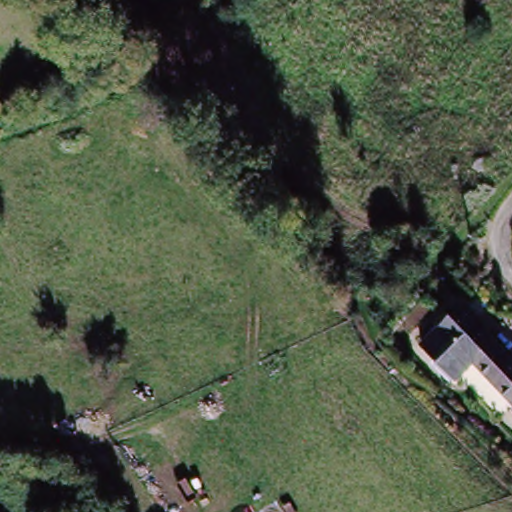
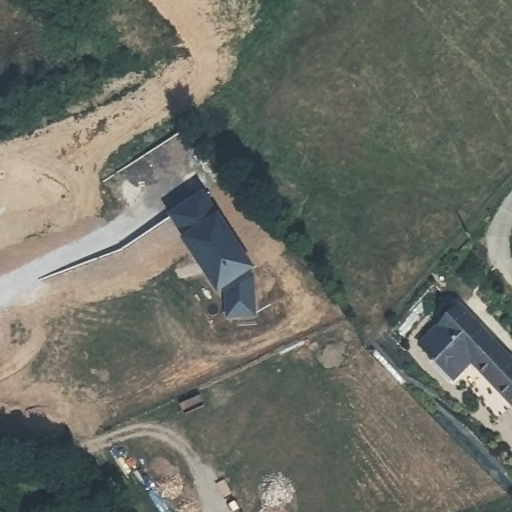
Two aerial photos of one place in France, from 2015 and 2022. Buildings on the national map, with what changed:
new [(224,209),(221,212),(258,267),(254,271),(256,318),(226,319),(224,293),(219,296),(184,241),(168,212),(207,186),(224,209)]
unchanged [(422,342),(459,307),(474,325),(438,358),(422,342)]
unchanged [(456,377),(438,358),(474,325),(492,342),(471,363),(456,377)]
unchanged [(492,342),(512,362),(512,404),(471,363),(492,342)]

